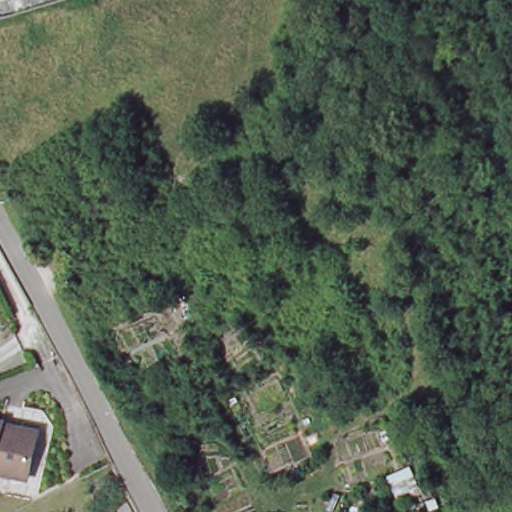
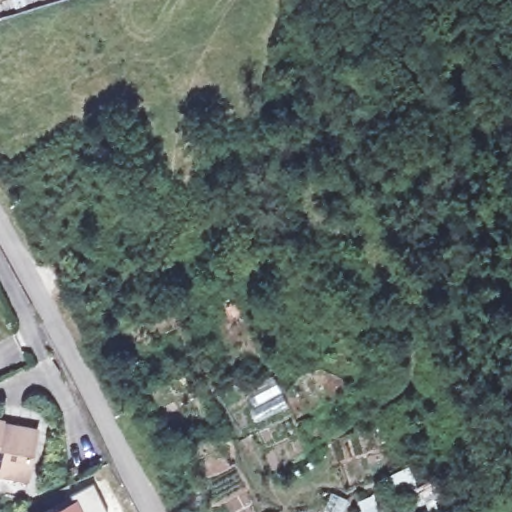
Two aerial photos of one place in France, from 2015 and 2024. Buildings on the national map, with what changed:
unchanged [(70,280),(60,285),(52,273),(63,267),(70,280)]
unchanged [(0,471),(0,421),(7,422),(35,429),(25,468),(22,476),(6,472),(0,471)]
new [(75,496),(74,493),(94,482),(108,512),(46,512),(75,496)]

